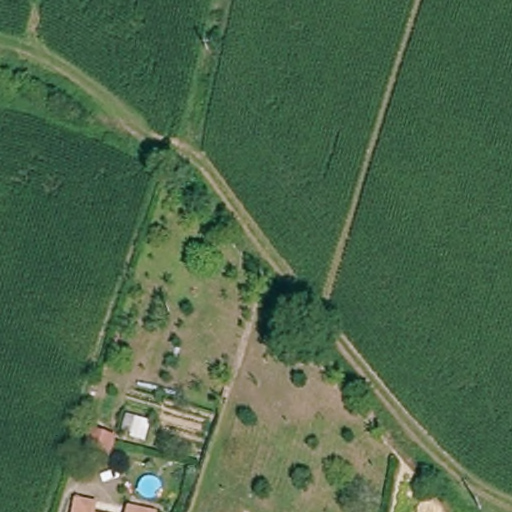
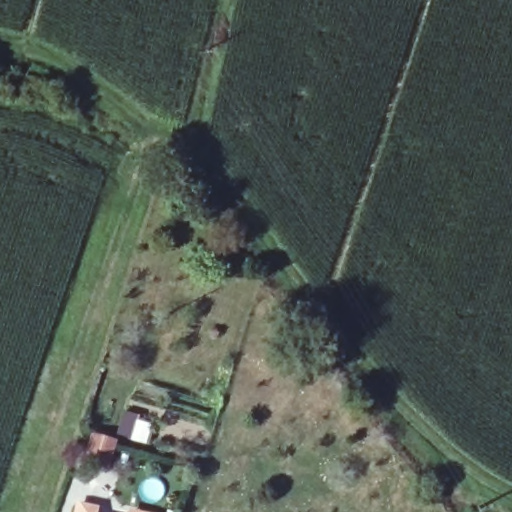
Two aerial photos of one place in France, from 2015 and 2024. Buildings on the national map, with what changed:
unchanged [(180,455),(163,448),(170,429),(187,435),(180,455)]
unchanged [(103,444),(122,450),(115,473),(95,467),(103,444)]
unchanged [(84,509),(99,512),(83,512),(84,509)]

